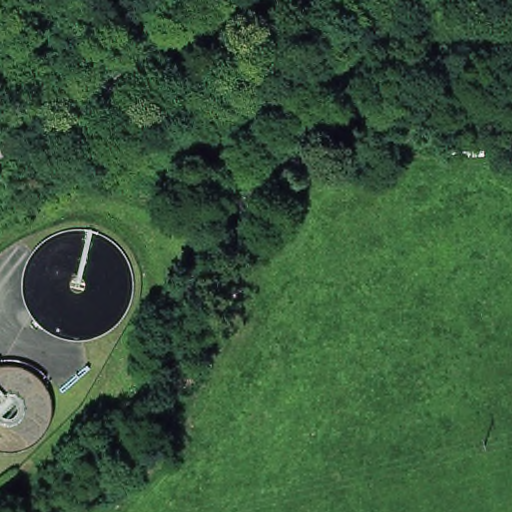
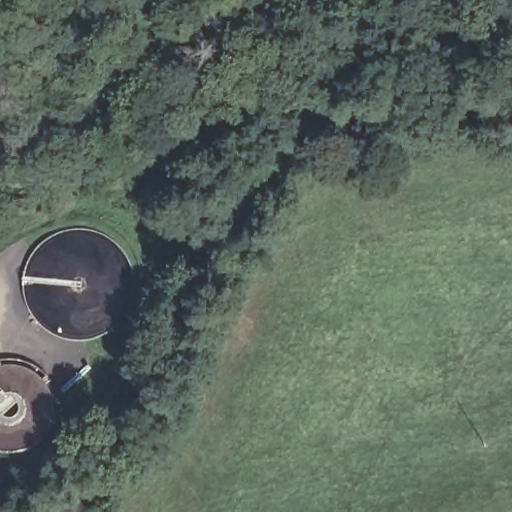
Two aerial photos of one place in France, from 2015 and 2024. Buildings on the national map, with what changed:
unchanged [(22,317),(15,309),(19,306),(21,309),(24,312),(25,313),(22,317)]
unchanged [(63,388),(61,385),(90,362),(92,365),(63,388)]

